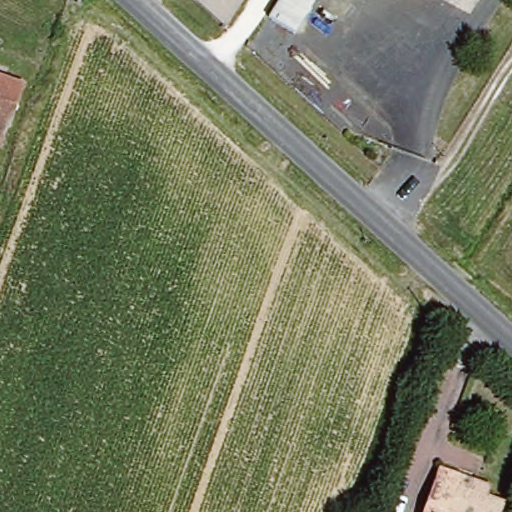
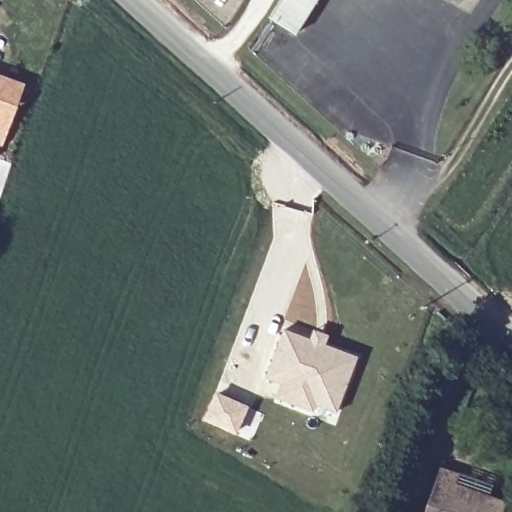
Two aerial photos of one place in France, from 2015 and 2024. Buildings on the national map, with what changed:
unchanged [(281,0),(317,0),(296,35),(269,19),(281,0)]
unchanged [(4,137),(0,136),(0,76),(21,84),(4,137)]
new [(309,338),(312,330),(327,335),(324,345),(355,357),(335,412),(314,405),(311,412),(274,398),(279,383),(264,379),(283,330),(309,338)]
unchanged [(458,484),(452,497),(433,490),(444,465),(496,483),(491,497),(458,484)]
unchanged [(452,497),(458,484),(491,497),(512,505),(509,512),(424,512),(433,490),(452,497)]

